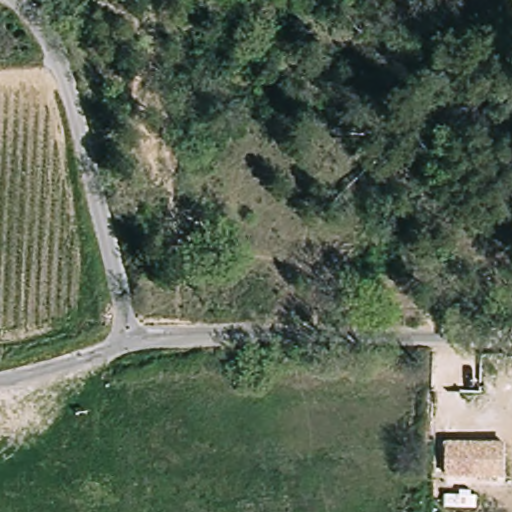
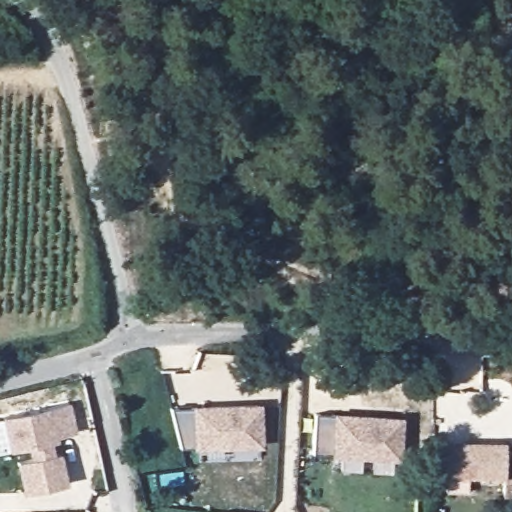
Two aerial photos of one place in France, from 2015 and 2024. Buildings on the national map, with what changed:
new [(16,464),(30,460),(27,448),(10,450),(3,417),(69,403),(76,433),(57,436),(58,441),(51,443),(54,455),(59,453),(65,482),(22,494),(16,464)]
new [(193,409),(193,406),(262,404),(263,448),(193,450),(194,446),(180,446),(171,410),(193,409)]
new [(335,416),(335,413),(403,418),(400,461),(332,457),(333,454),(313,452),(315,414),(335,416)]
unchanged [(445,442),(505,442),(505,477),(447,476),(445,442)]

